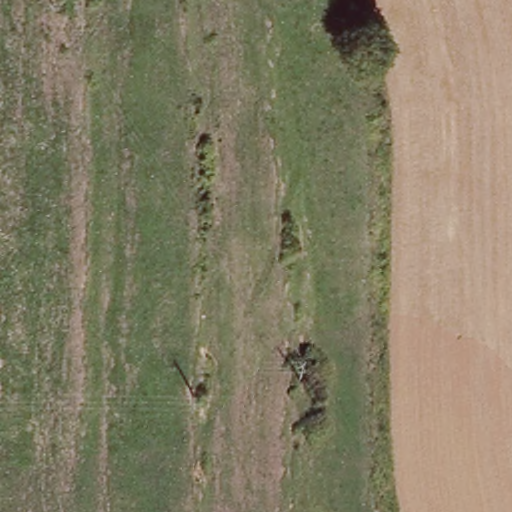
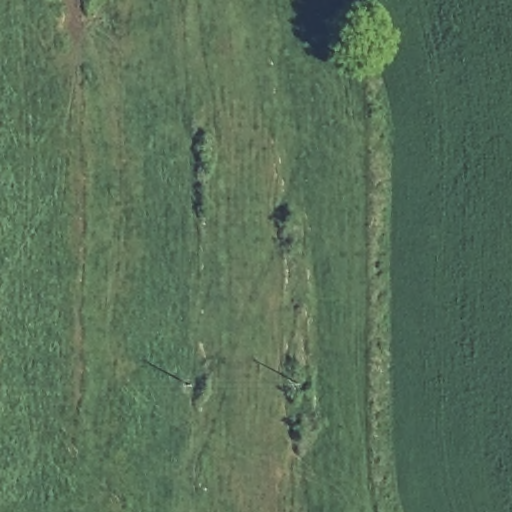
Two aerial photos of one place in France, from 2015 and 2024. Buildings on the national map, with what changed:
[]

